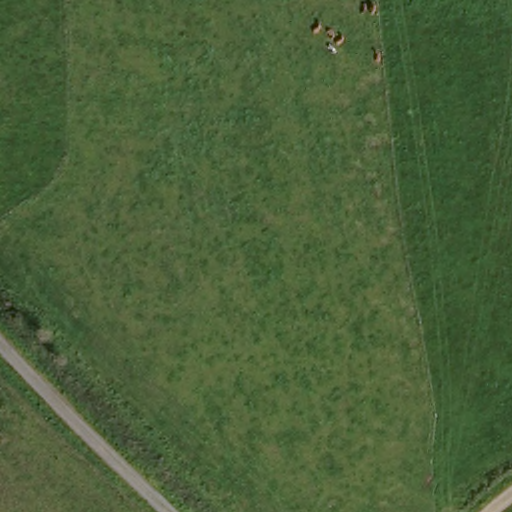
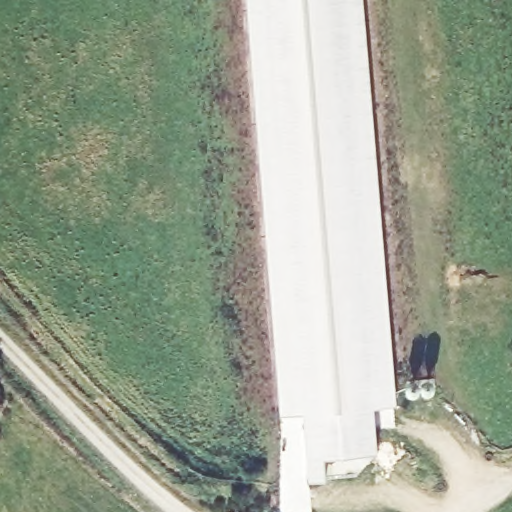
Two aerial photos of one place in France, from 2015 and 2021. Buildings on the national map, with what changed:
new [(247,0),(362,0),(394,404),(373,406),(377,450),(324,455),(326,476),(308,478),(303,411),(280,413),(247,0)]

